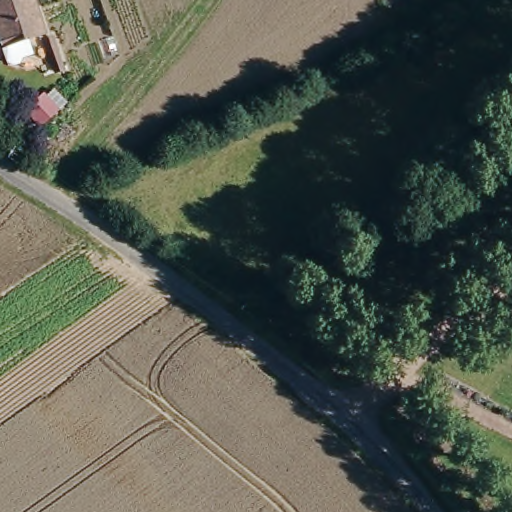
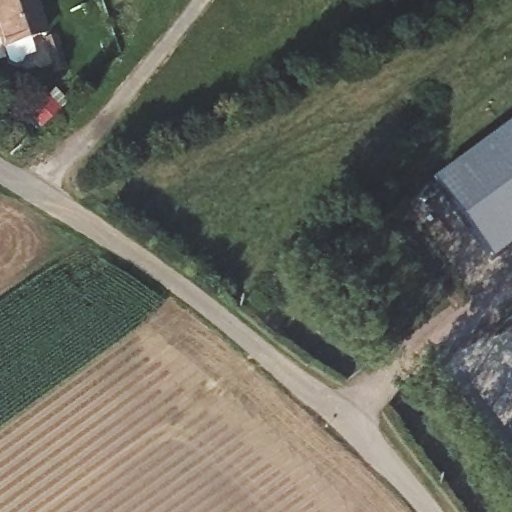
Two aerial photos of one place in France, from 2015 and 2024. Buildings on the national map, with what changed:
unchanged [(0,49),(0,0),(29,0),(40,40),(0,49)]
new [(492,263),(433,182),(512,123),(512,249),(492,263)]

